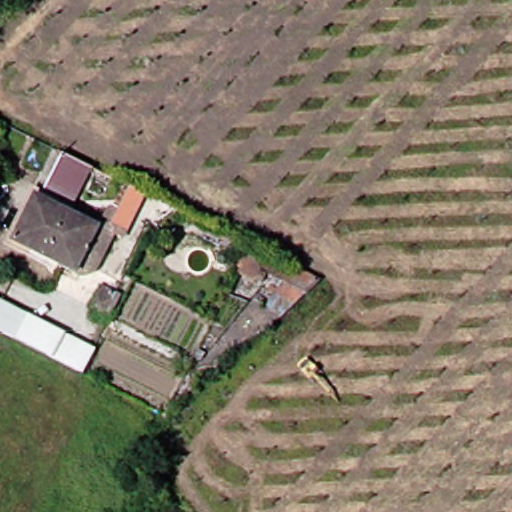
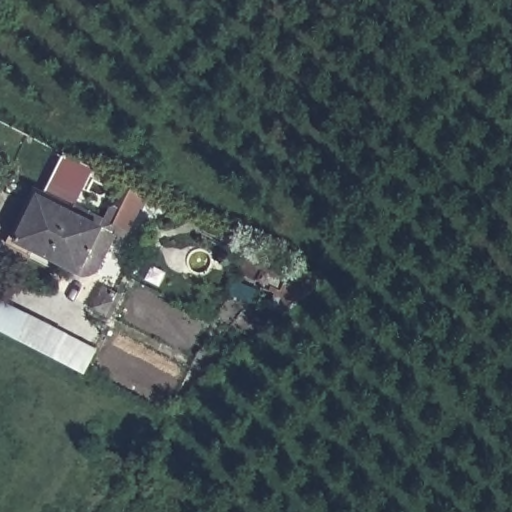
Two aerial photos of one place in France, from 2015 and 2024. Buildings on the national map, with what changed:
unchanged [(84,158),(58,209),(99,231),(76,277),(12,244),(62,146),(84,158)]
unchanged [(0,337),(0,317),(11,323),(1,338),(0,337)]

